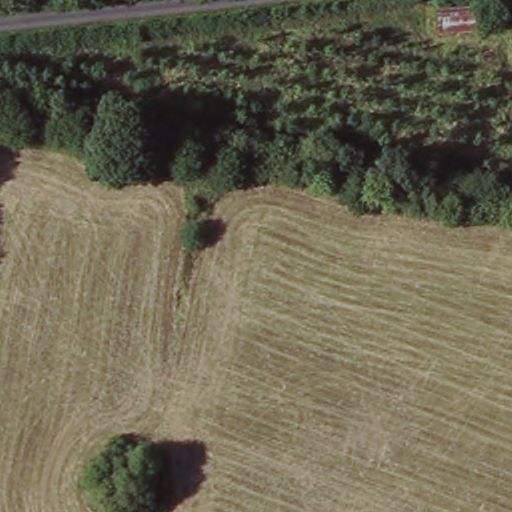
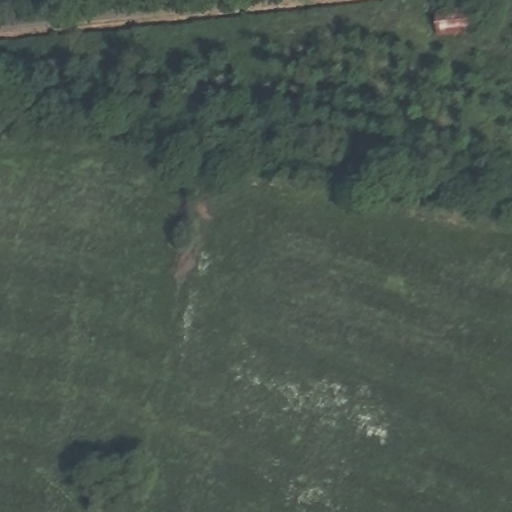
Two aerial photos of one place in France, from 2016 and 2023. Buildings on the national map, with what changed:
unchanged [(472,30),(438,33),(437,10),(470,7),(472,30)]

